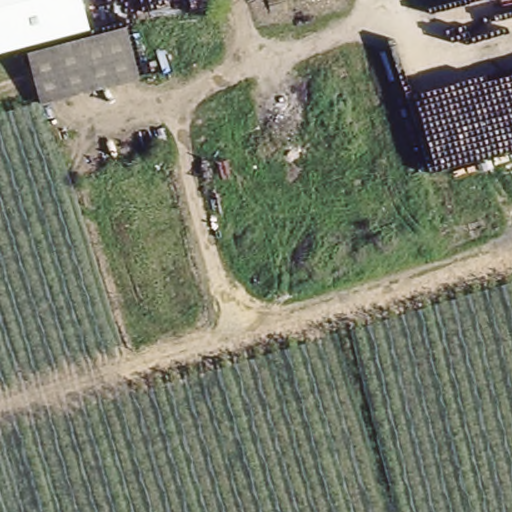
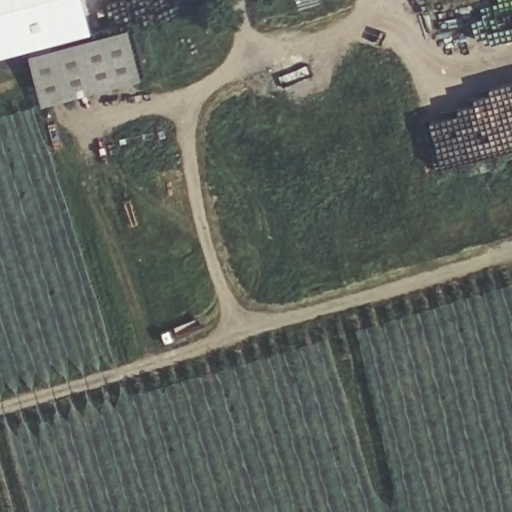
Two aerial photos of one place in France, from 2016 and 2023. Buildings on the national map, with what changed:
unchanged [(0,50),(0,0),(78,0),(85,29),(0,50)]
unchanged [(27,52),(128,26),(140,78),(39,108),(27,52)]

